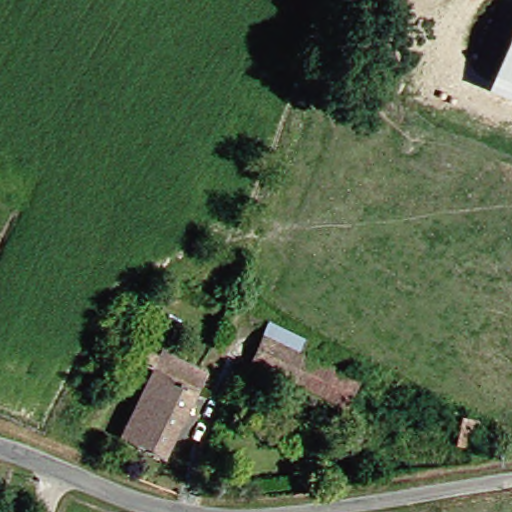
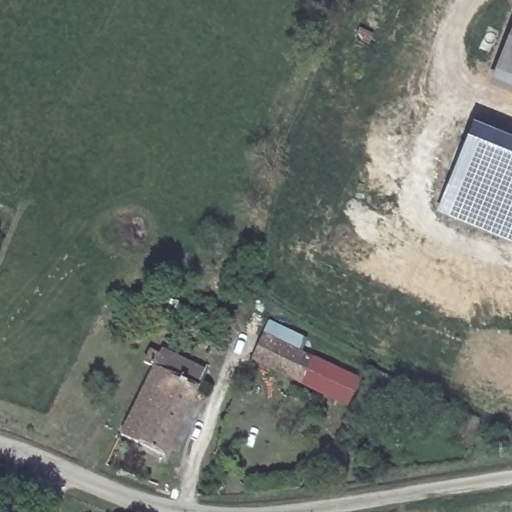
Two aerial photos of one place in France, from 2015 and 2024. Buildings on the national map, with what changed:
new [(512,27),(512,98),(487,89),(512,27)]
new [(470,124),(512,141),(512,248),(433,214),(470,124)]
unchanged [(363,388),(352,409),(262,370),(275,344),(279,336),(328,359),(324,366),(322,369),(363,388)]
unchanged [(124,430),(159,369),(143,361),(149,349),(162,357),(164,351),(213,378),(172,453),(124,430)]
unchanged [(480,442),(473,458),(461,453),(468,438),(480,442)]

